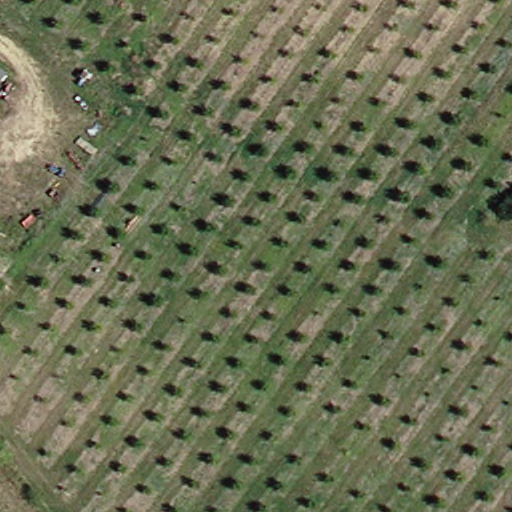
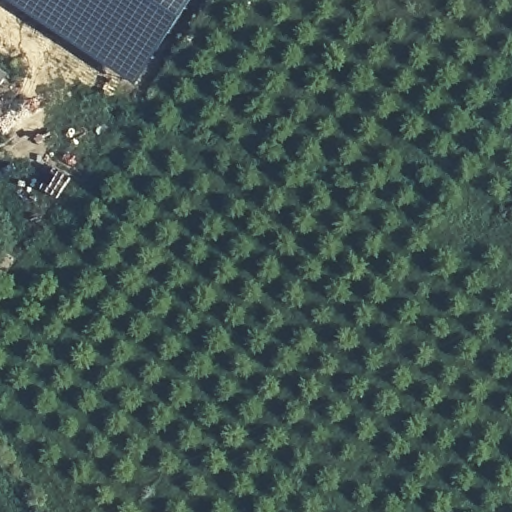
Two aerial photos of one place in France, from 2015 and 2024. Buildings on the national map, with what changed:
new [(135,85),(8,0),(192,0),(135,85)]
unchanged [(7,66),(0,75),(0,61),(7,66)]

